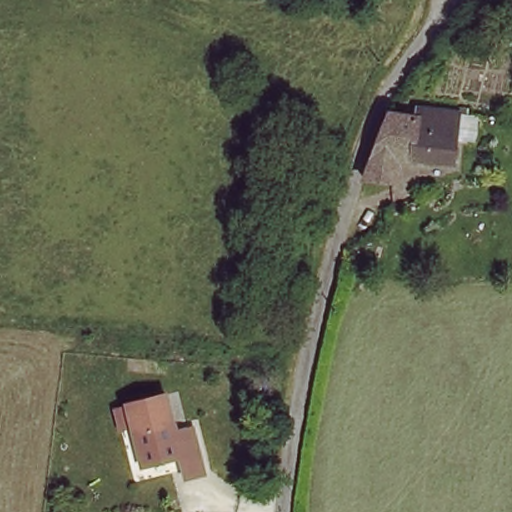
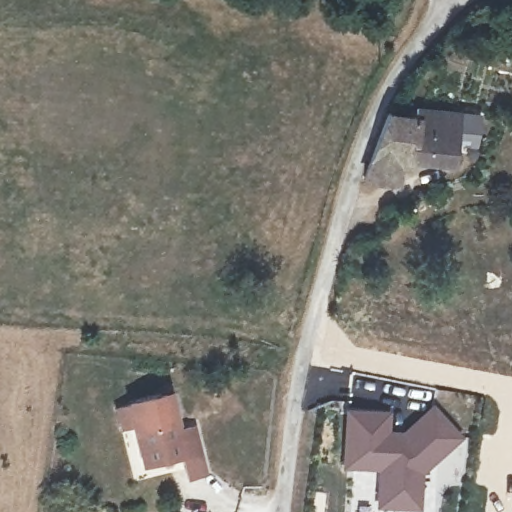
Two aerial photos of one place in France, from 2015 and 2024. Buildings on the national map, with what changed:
unchanged [(366,183),(374,160),(382,139),(387,127),(389,121),(417,121),(418,117),(467,116),(467,125),(457,125),(455,168),(396,167),(395,187),(365,186),(366,183)]
unchanged [(168,389),(178,427),(194,422),(207,467),(189,472),(183,451),(147,461),(136,422),(124,425),(118,404),(130,401),(130,400),(168,389)]
new [(421,473),(419,510),(374,507),(377,470),(340,467),(344,407),(387,410),(388,430),(400,431),(430,403),(460,437),(421,473)]

